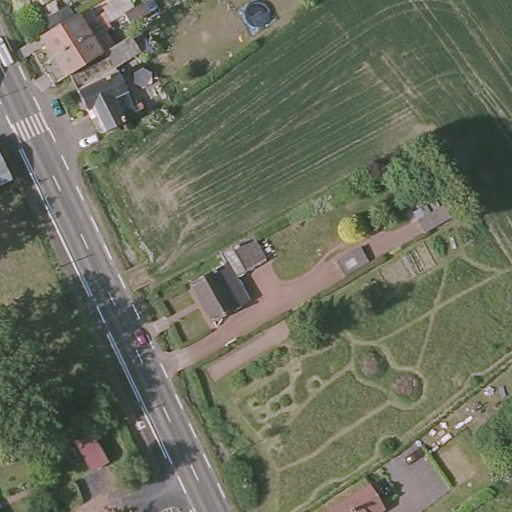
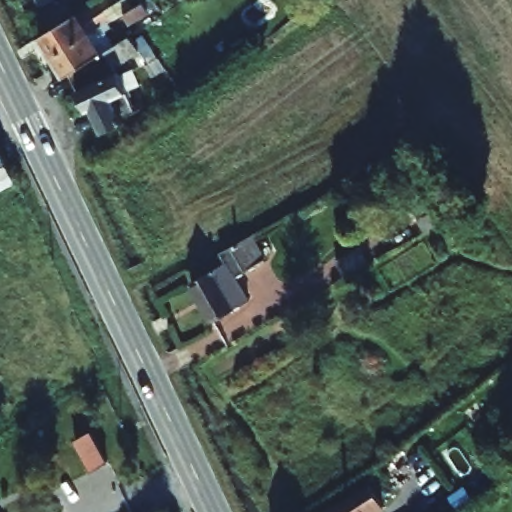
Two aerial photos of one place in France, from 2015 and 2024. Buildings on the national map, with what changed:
unchanged [(124,12),(144,0),(149,10),(130,22),(124,12)]
unchanged [(30,36),(65,14),(72,25),(94,10),(101,21),(99,22),(43,56),(30,36)]
unchanged [(56,77),(43,56),(99,22),(102,27),(97,31),(105,45),(60,74),(56,77)]
unchanged [(130,50),(106,67),(124,105),(131,102),(133,108),(113,118),(115,122),(94,132),(82,109),(78,110),(60,74),(105,45),(120,35),(130,50)]
unchanged [(0,182),(0,171),(5,180),(0,182)]
unchanged [(455,215),(425,232),(418,220),(447,202),(455,215)]
unchanged [(204,321),(181,282),(216,262),(211,252),(242,235),(257,260),(227,277),(239,301),(204,321)]
unchanged [(336,261),(360,246),(369,261),(344,275),(336,261)]
unchanged [(379,511),(378,512),(329,512),(366,490),(379,511)]
unchanged [(403,512),(396,512),(401,509),(403,512)]

